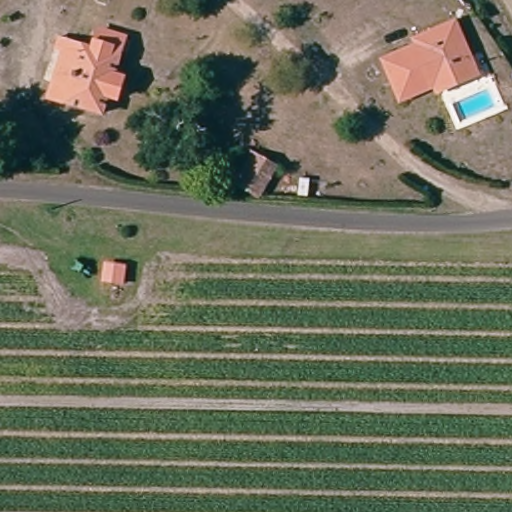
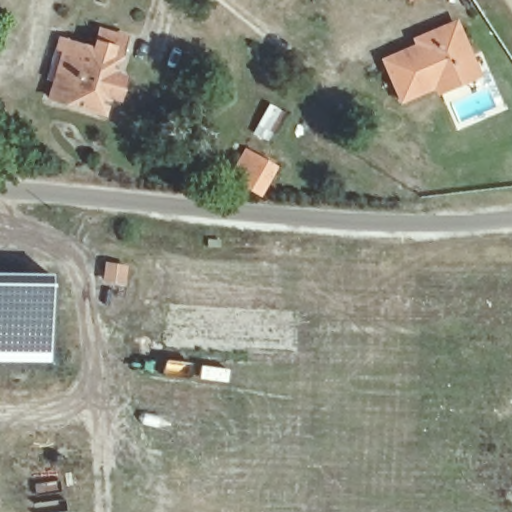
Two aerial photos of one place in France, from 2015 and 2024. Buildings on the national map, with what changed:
demolished [(0,39),(0,14),(5,16),(0,39)]
unchanged [(458,81),(439,89),(433,76),(397,92),(383,59),(423,41),(419,34),(455,18),(470,52),(479,71),(458,81)]
unchanged [(104,115),(51,100),(54,91),(35,85),(48,41),(66,46),(67,44),(99,53),(101,47),(95,45),(99,32),(125,40),(104,115)]
unchanged [(231,173),(241,146),(280,168),(275,186),(255,194),(231,173)]
new [(51,363),(0,362),(0,272),(51,272),(51,363)]

